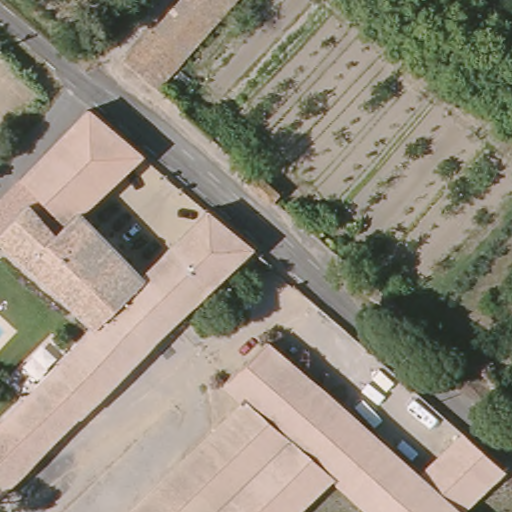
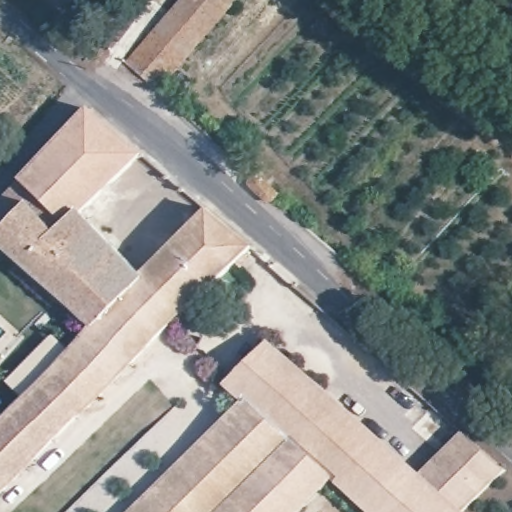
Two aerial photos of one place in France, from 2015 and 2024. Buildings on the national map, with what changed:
unchanged [(131,65),(186,0),(241,0),(163,92),(131,65)]
unchanged [(86,218),(147,277),(96,329),(0,244),(0,207),(24,182),(93,111),(145,157),(86,218)]
unchanged [(278,194),(270,203),(250,185),(258,176),(278,194)]
unchanged [(0,499),(0,426),(96,329),(147,277),(212,211),(257,247),(0,499)]
unchanged [(263,335),(421,474),(462,427),(503,464),(462,511),(464,512),(373,512),(331,475),(242,397),(224,380),(263,335)]
unchanged [(242,397),(331,475),(293,512),(124,512),(242,397)]

